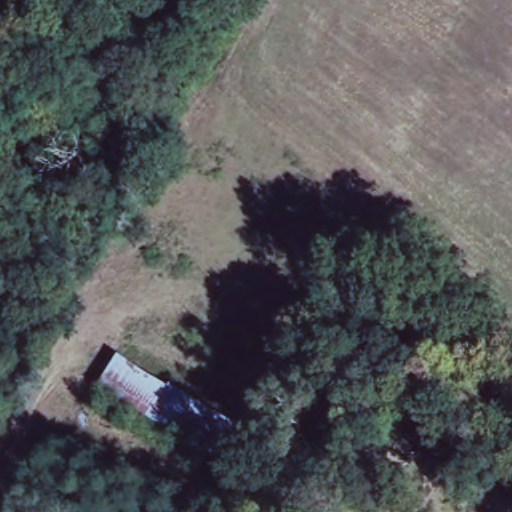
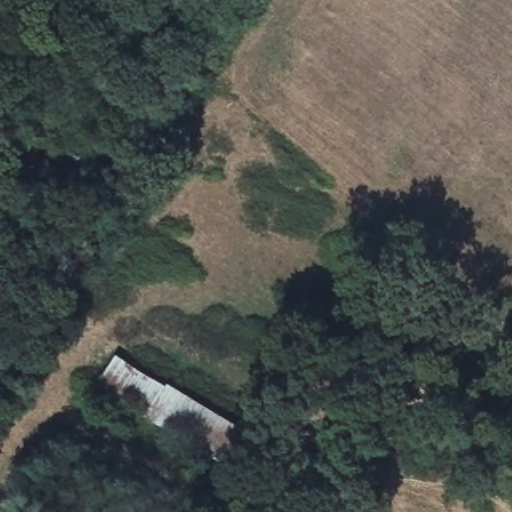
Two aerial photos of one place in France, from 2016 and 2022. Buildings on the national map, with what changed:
unchanged [(95,382),(118,341),(248,424),(222,463),(95,382)]

